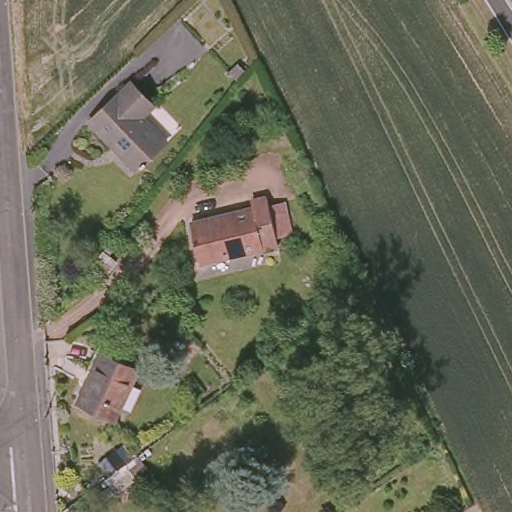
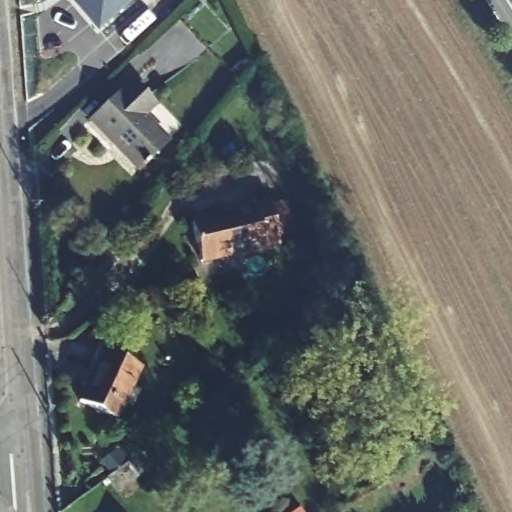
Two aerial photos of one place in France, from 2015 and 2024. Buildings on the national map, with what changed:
new [(68,0),(135,0),(97,33),(68,0)]
unchanged [(85,123),(126,82),(148,104),(137,115),(162,140),(132,170),(85,123)]
unchanged [(277,245),(200,264),(190,225),(251,211),(250,204),(267,200),(277,245)]
unchanged [(102,249),(115,260),(100,278),(87,268),(102,249)]
unchanged [(101,351),(137,369),(113,419),(77,401),(101,351)]
unchanged [(135,478),(114,494),(104,480),(126,464),(135,478)]

